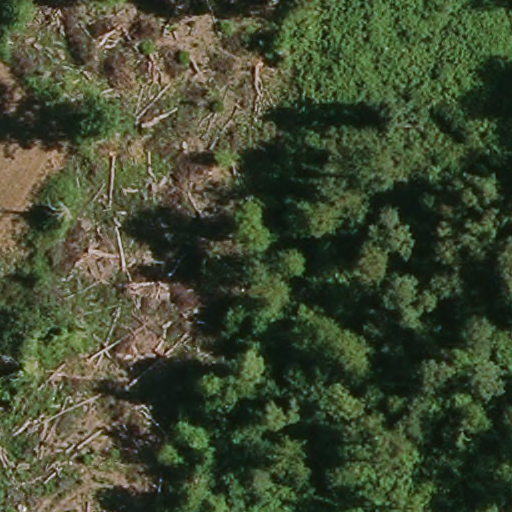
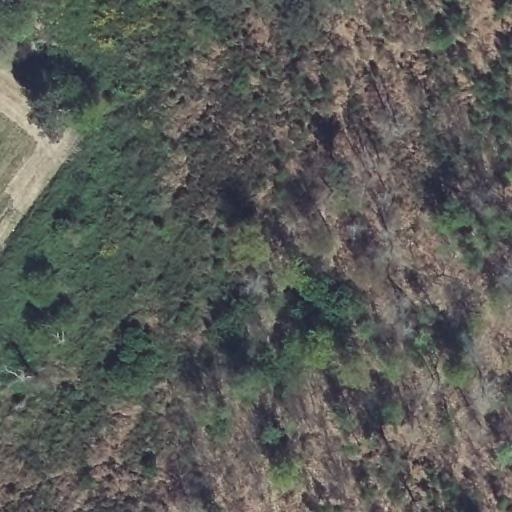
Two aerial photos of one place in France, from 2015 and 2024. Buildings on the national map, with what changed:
unchanged [(142,89),(135,99),(125,92),(131,84),(142,89)]

